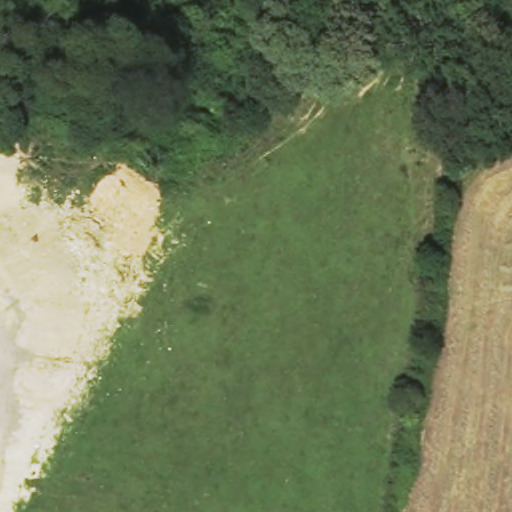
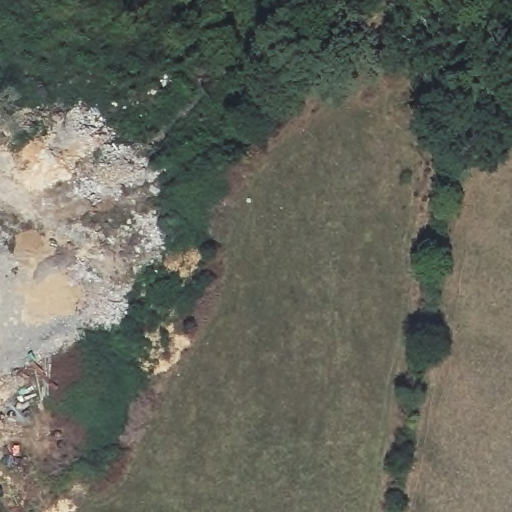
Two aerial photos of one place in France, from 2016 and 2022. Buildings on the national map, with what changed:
[]

